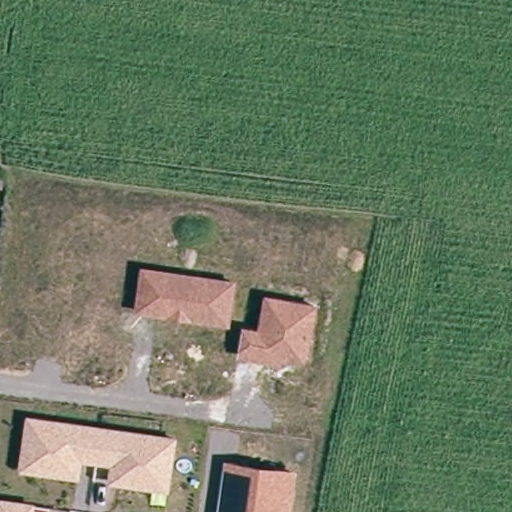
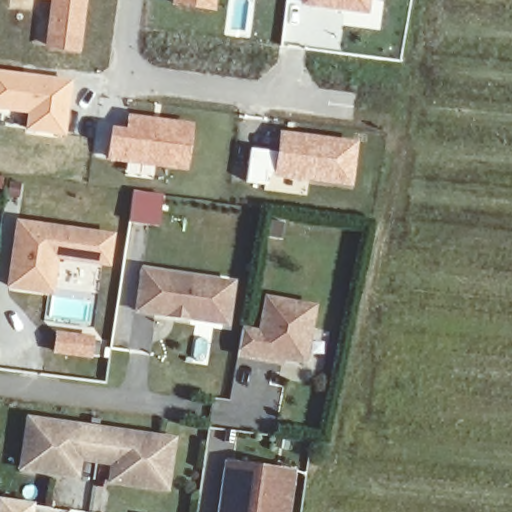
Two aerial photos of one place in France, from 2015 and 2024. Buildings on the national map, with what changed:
new [(44,49),(49,0),(88,0),(81,54),(44,49)]
new [(217,0),(215,13),(170,5),(171,0),(217,0)]
new [(299,0),(298,6),(285,4),(285,0),(299,0)]
new [(372,0),(369,19),(298,6),(299,0),(372,0)]
new [(66,138),(24,132),(26,114),(0,111),(0,70),(73,79),(66,138)]
new [(110,125),(124,127),(127,113),(194,122),(188,173),(155,168),(153,179),(124,175),(126,164),(106,161),(110,125)]
new [(275,151),(279,129),(358,140),(351,188),(273,178),(269,178),(268,185),(245,182),(249,147),(275,151)]
new [(133,189),(164,194),(160,227),(128,222),(133,189)]
new [(9,289),(18,222),(115,233),(110,269),(60,262),(55,295),(9,289)]
unchanged [(237,280),(230,328),(134,314),(140,268),(237,280)]
unchanged [(258,330),(264,294),(319,305),(309,357),(279,367),(239,361),(243,328),(258,330)]
unchanged [(179,437),(170,494),(107,484),(110,466),(82,462),(79,481),(18,473),(25,414),(179,437)]
unchanged [(224,460),(298,471),(292,512),(217,512),(224,460)]
unchanged [(0,497),(35,502),(34,512),(0,512),(0,497)]

